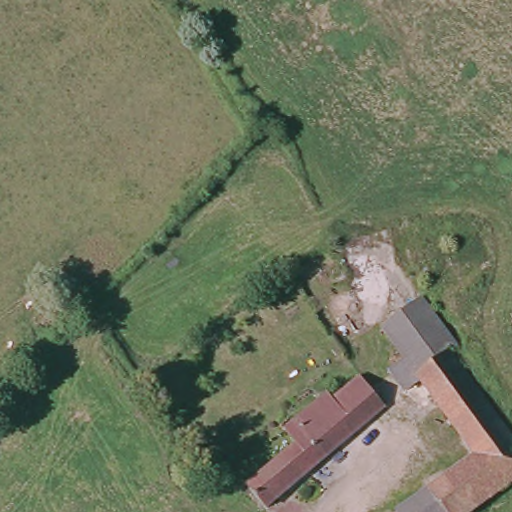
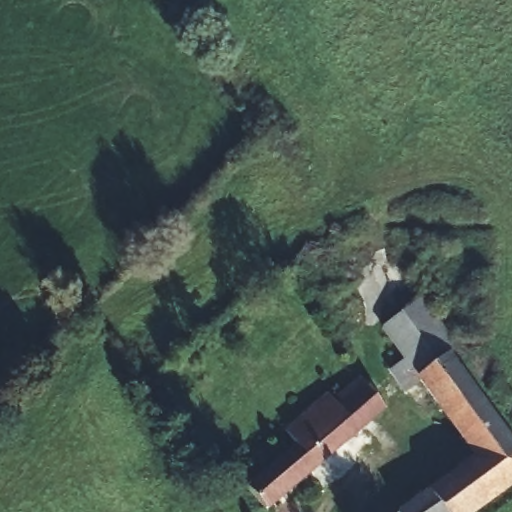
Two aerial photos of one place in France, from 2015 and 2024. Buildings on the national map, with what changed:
unchanged [(418,300),(426,296),(460,344),(447,353),(422,321),(410,306),(418,300)]
unchanged [(435,483),(480,454),(436,394),(424,402),(407,377),(426,365),(392,318),(410,306),(422,321),(447,353),(491,410),(512,439),(512,488),(480,510),(478,512),(392,512),(435,483)]
unchanged [(291,451),(280,436),(305,417),(356,378),(381,406),(270,503),(251,484),(291,451)]

